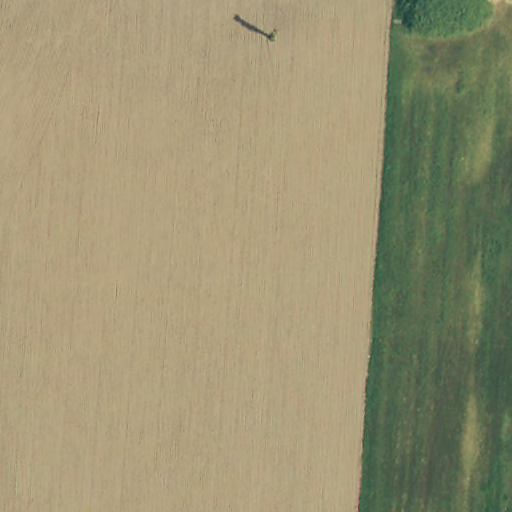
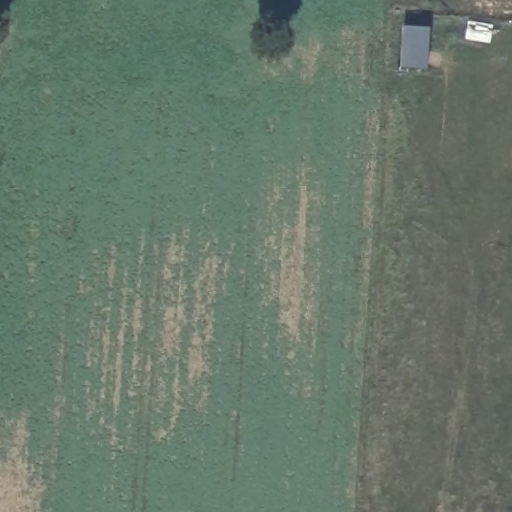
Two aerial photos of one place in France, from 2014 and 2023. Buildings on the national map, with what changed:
new [(432,29),(427,70),(400,67),(405,26),(432,29)]

